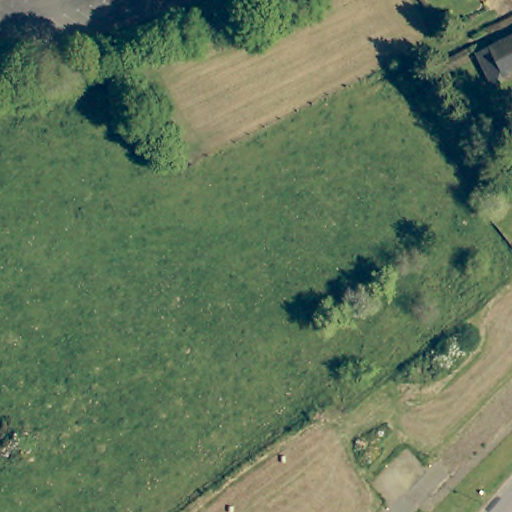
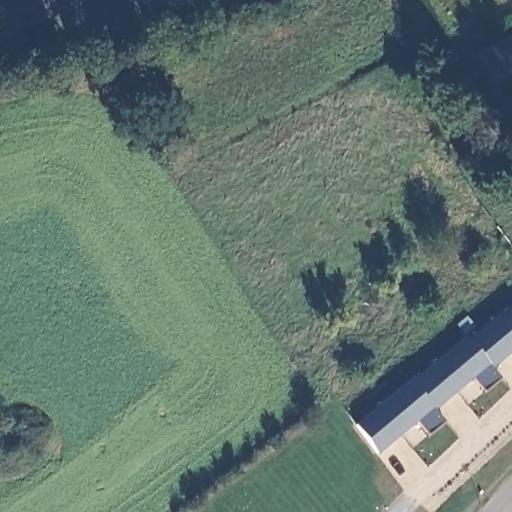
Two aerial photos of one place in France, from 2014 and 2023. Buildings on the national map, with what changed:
new [(259,1),(259,0),(262,0),(259,1)]
unchanged [(481,50),(512,33),(512,71),(497,79),(481,50)]
new [(499,378),(484,390),(474,378),(435,411),(442,421),(428,433),(419,424),(379,457),(356,426),(410,379),(414,381),(466,337),(470,339),(507,307),(512,310),(512,353),(492,369),(499,378)]

